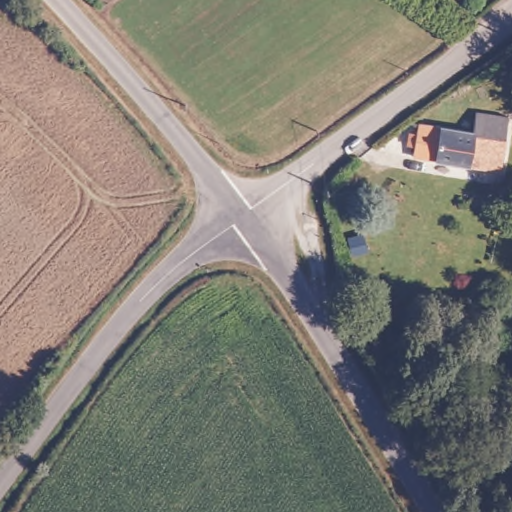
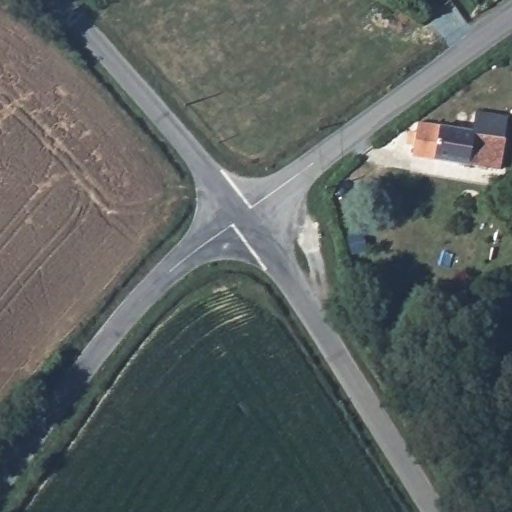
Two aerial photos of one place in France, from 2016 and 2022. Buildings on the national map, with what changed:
unchanged [(470,127),(472,110),(506,115),(502,157),(488,156),(486,166),(410,152),(416,120),(470,127)]

